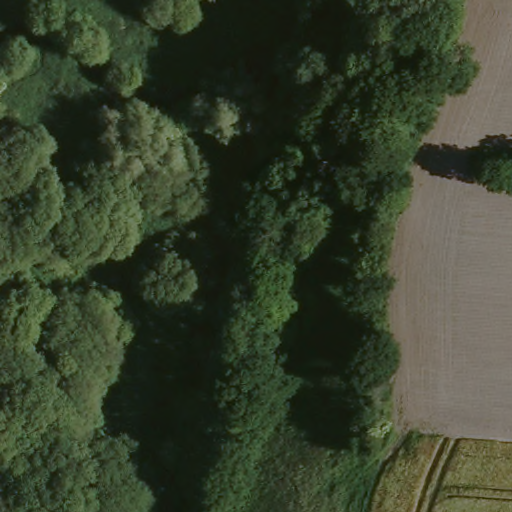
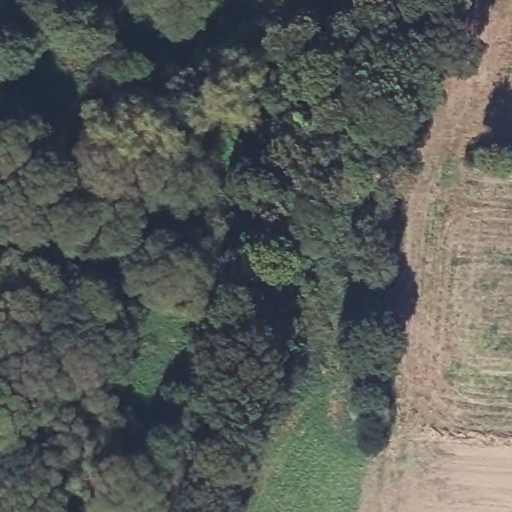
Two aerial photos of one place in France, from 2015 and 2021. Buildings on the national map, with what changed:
[]

